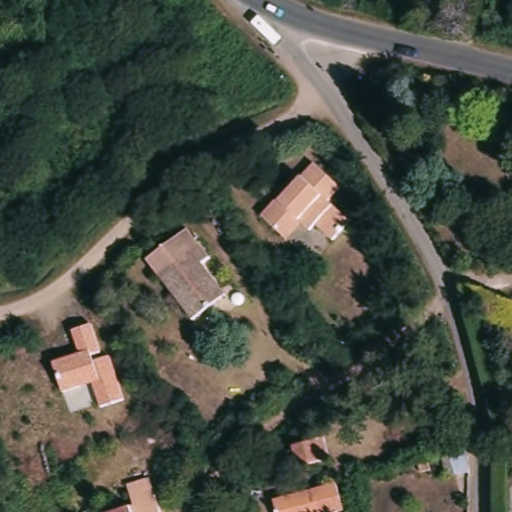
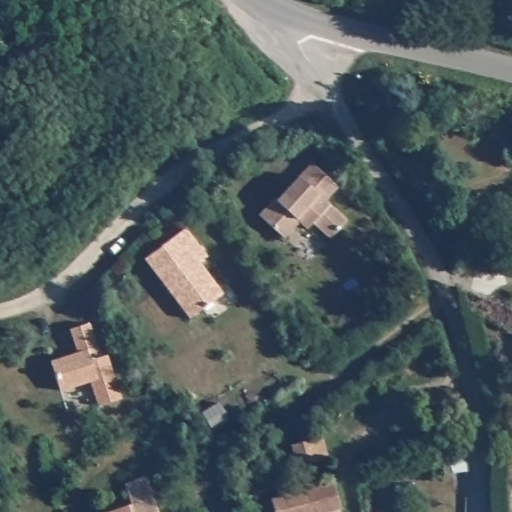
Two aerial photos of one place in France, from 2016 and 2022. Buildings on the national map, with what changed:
unchanged [(272,227),(258,214),(275,197),(277,199),(311,162),(337,186),(325,200),(347,220),(330,238),(313,222),(307,229),(299,221),(283,238),(272,227)]
unchanged [(145,253),(185,222),(197,238),(207,251),(199,257),(223,288),(190,313),(156,269),(145,253)]
unchanged [(99,407),(91,382),(62,390),(50,360),(78,351),(70,328),(91,322),(101,351),(92,354),(94,360),(109,355),(124,398),(99,407)]
unchanged [(296,466),(291,444),(322,436),(328,458),(296,466)]
unchanged [(465,447),(467,471),(452,472),(447,452),(465,447)]
unchanged [(425,460),(427,469),(416,471),(415,462),(425,460)]
unchanged [(128,499),(129,502),(132,501),(127,485),(124,478),(146,470),(149,477),(161,512),(103,512),(101,509),(128,499)]
unchanged [(271,493),(334,477),(341,503),(309,512),(276,512),(271,493)]

